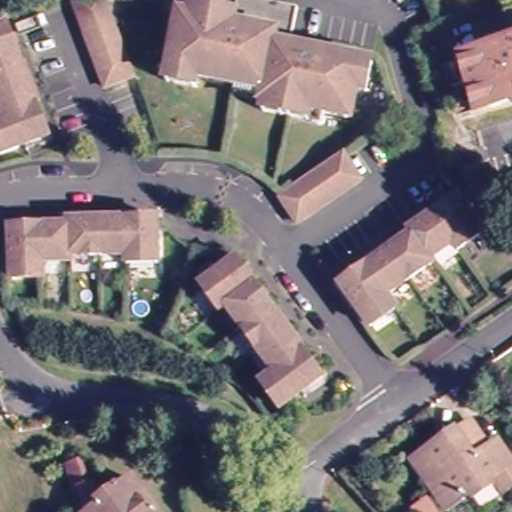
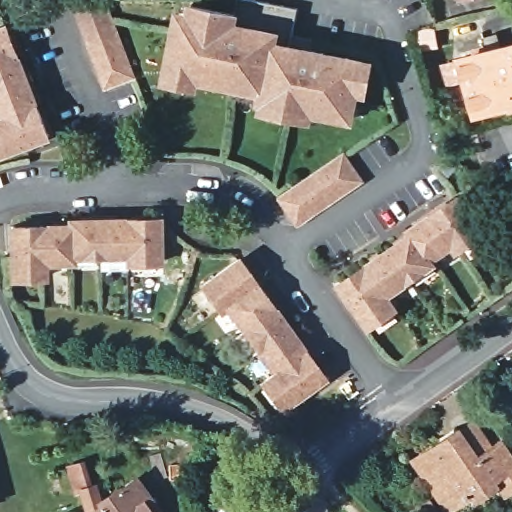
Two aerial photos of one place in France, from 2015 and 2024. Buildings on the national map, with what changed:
unchanged [(102,0),(131,78),(105,88),(73,3),(81,0),(102,0)]
unchanged [(265,101),(261,101),(236,96),(238,86),(197,78),(195,88),(167,82),(170,66),(177,30),(182,4),(193,6),(234,15),(238,0),(257,0),(297,8),(289,46),(362,61),(372,64),(366,93),(357,91),(351,119),(310,111),(308,121),(306,121),(263,111),(265,101)]
unchanged [(0,125),(0,124),(0,33),(2,33),(7,44),(43,141),(4,156),(0,158),(0,125)]
unchanged [(503,101),(467,111),(452,59),(512,42),(512,101),(504,103),(503,101)]
unchanged [(289,190),(322,168),(339,156),(356,181),(334,195),(292,224),(281,208),(275,199),(289,190)]
unchanged [(387,312),(365,327),(360,320),(359,318),(336,285),(365,264),(407,236),(405,232),(453,198),(478,234),(452,251),(448,244),(425,260),(428,264),(381,296),(386,303),(390,310),(387,312)]
unchanged [(7,279),(7,270),(6,228),(64,227),(64,222),(151,220),(152,264),(122,265),(122,255),(66,256),(66,261),(38,262),(38,270),(38,279),(7,279)]
unchanged [(258,390),(257,388),(264,383),(270,378),(221,310),(215,315),(197,291),(232,266),(301,362),(317,383),(282,408),(275,413),(258,390)]
unchanged [(410,464),(436,446),(435,445),(451,433),(453,435),(468,424),(486,451),(495,445),(512,469),(512,486),(505,491),(499,495),(489,479),(458,500),(442,511),(437,503),(410,464)]
unchanged [(78,490),(70,466),(85,462),(93,486),(98,503),(116,490),(117,491),(133,481),(155,512),(85,512),(78,490)]
unchanged [(427,502),(434,512),(416,512),(414,511),(427,502)]

